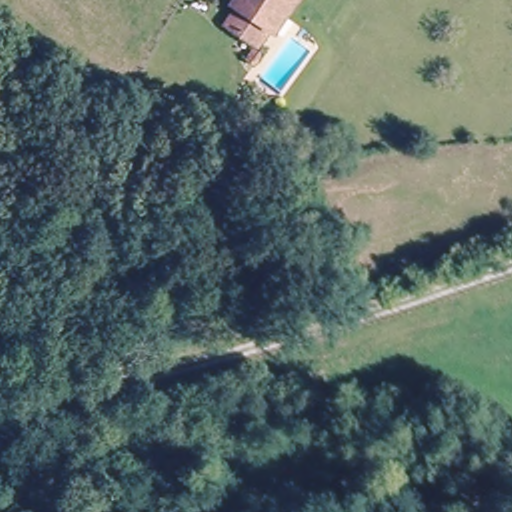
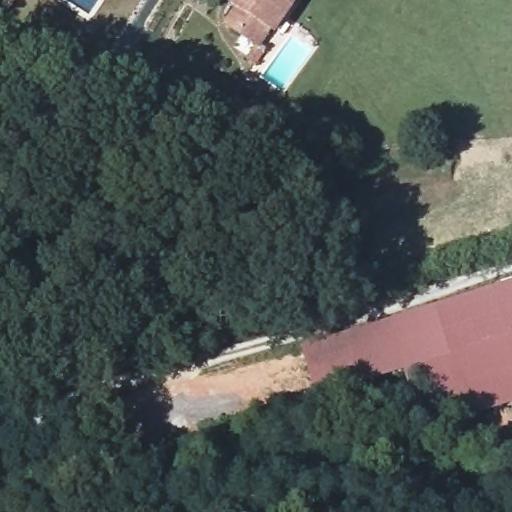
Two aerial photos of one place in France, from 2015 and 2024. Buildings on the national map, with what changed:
unchanged [(243,0),(242,0),(291,0),(276,24),(271,21),(261,38),(230,18),(243,0)]
new [(470,420),(464,400),(431,411),(423,388),(410,393),(404,373),(316,400),(300,349),(512,282),(512,406),(470,420)]

